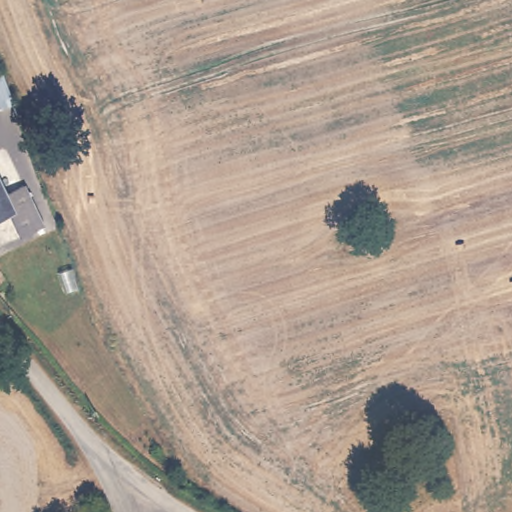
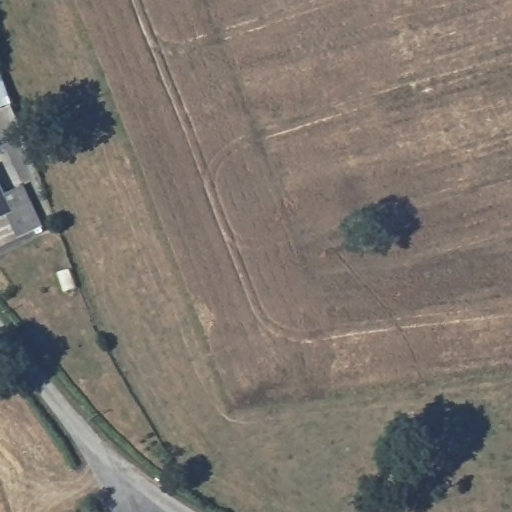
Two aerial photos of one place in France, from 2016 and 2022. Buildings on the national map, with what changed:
unchanged [(24,183),(43,221),(20,232),(9,211),(0,215),(0,176),(7,191),(24,183)]

